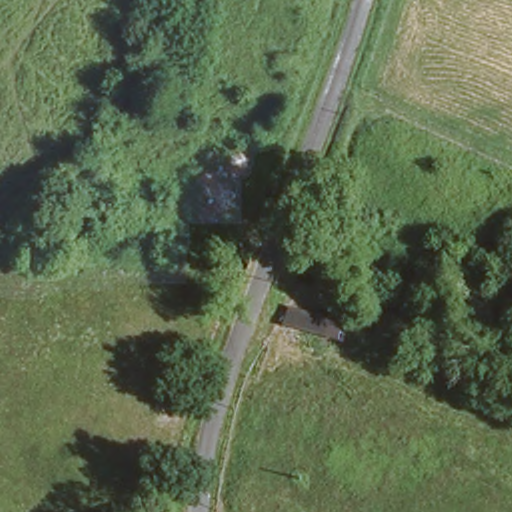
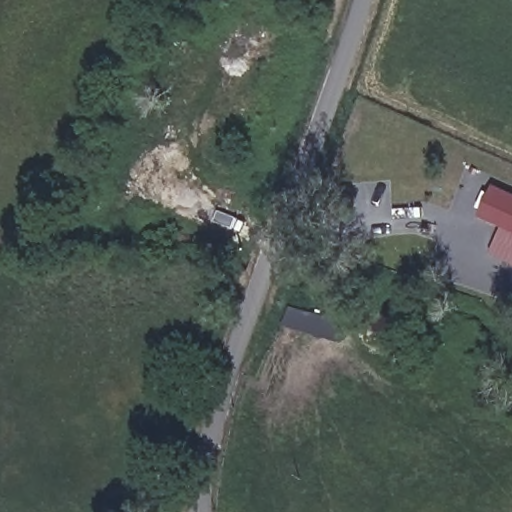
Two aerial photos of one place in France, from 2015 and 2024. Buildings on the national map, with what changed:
new [(512,262),(490,252),(502,225),(478,215),(492,182),(512,191),(512,262)]

